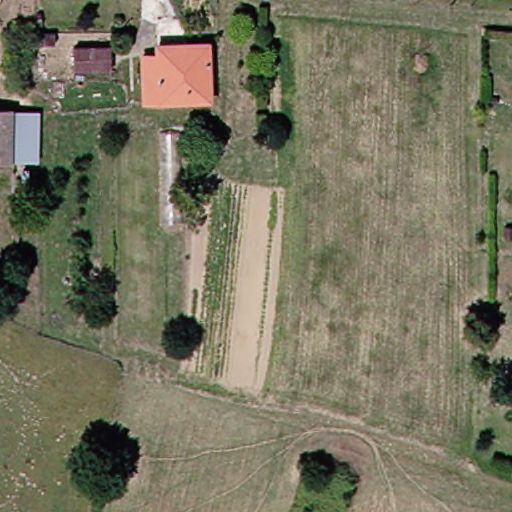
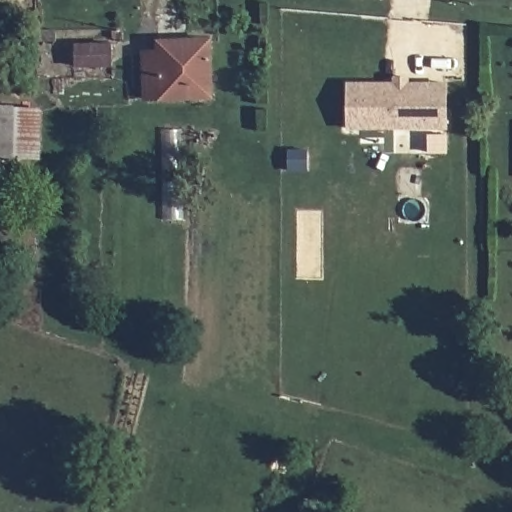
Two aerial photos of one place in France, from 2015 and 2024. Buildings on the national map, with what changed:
unchanged [(116,66),(79,66),(79,45),(116,45),(116,66)]
unchanged [(140,104),(139,58),(154,57),(154,56),(154,47),(181,46),(204,46),(206,102),(140,104)]
new [(430,84),(446,85),(446,110),(447,129),(347,129),(347,85),(430,84)]
unchanged [(7,164),(0,164),(0,112),(9,112),(7,164)]
unchanged [(32,112),(31,165),(7,164),(9,112),(32,112)]
unchanged [(152,128),(173,127),(173,222),(151,225),(152,128)]

